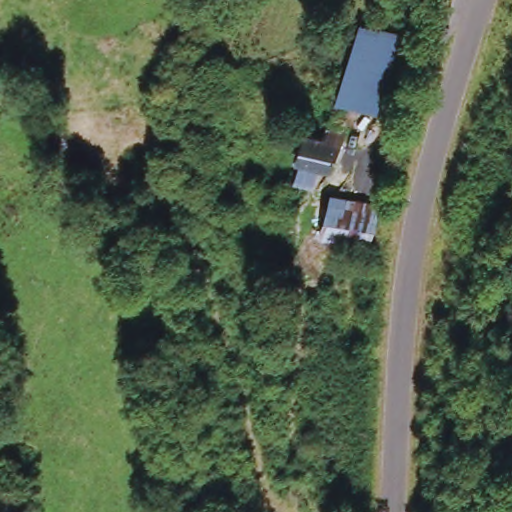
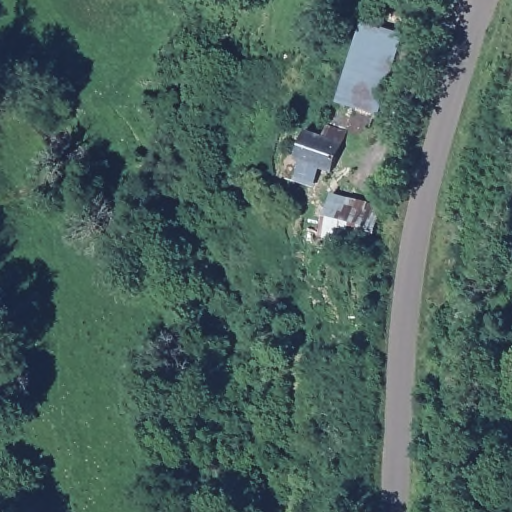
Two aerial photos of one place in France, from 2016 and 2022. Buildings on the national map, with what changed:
unchanged [(361,23),(407,36),(385,115),(336,102),(361,23)]
unchanged [(303,180),(309,161),(303,159),(311,128),(333,133),(335,126),(351,130),(341,170),(328,166),(323,186),(303,180)]
unchanged [(386,207),(376,245),(330,232),(341,193),(386,207)]

